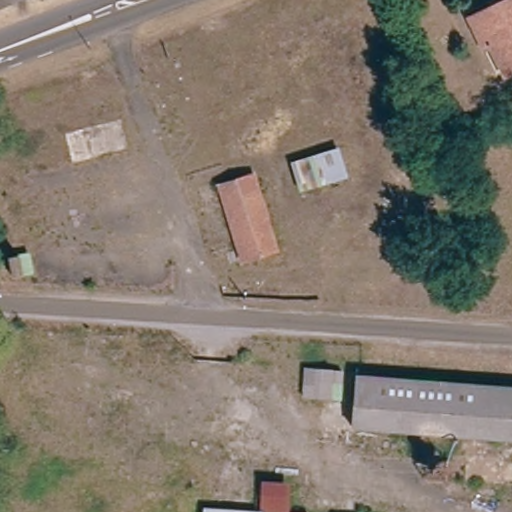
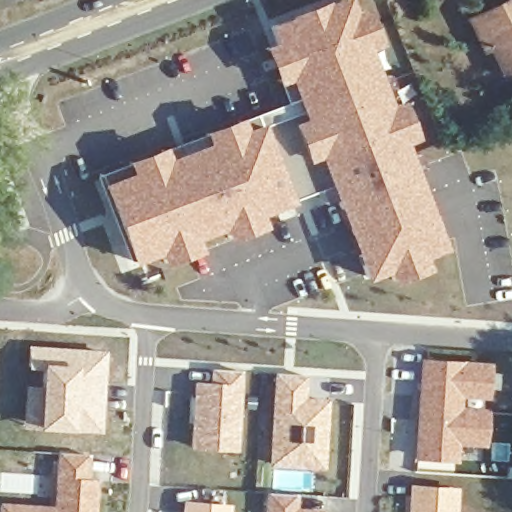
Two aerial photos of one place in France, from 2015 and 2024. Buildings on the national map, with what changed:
new [(287,103),(280,83),(277,85),(263,45),(273,42),(267,24),(335,0),(351,0),(355,11),(366,6),(381,45),(371,49),(392,104),(403,99),(417,139),(406,144),(445,251),(425,258),(429,270),(392,284),(387,273),(365,280),(330,186),(291,199),(293,204),(261,216),(265,227),(228,243),(223,230),(195,240),(199,253),(164,268),(159,255),(133,265),(102,184),(98,175),(287,103)]
unchanged [(491,52),(484,55),(472,31),(512,11),(512,79),(505,82),(491,52)]
demolished [(125,148),(87,160),(79,130),(115,119),(125,148)]
demolished [(351,178),(302,195),(292,159),(339,144),(351,178)]
demolished [(239,203),(228,206),(221,183),(260,171),(267,194),(283,246),(255,255),(239,203)]
demolished [(420,189),(432,222),(392,237),(379,200),(420,189)]
new [(25,384),(37,385),(39,371),(25,370),(27,344),(106,350),(99,432),(52,429),(21,424),(25,384)]
new [(420,357),(491,361),(483,448),(458,446),(455,470),(412,469),(420,357)]
new [(211,385),(213,368),(241,370),(235,449),(192,447),(197,383),(211,385)]
new [(273,372),(308,376),(306,395),(329,398),(324,471),(267,466),(273,372)]
demolished [(342,376),(341,386),(330,385),(329,401),(303,399),(305,373),(342,376)]
demolished [(357,379),(512,392),(512,443),(353,430),(357,379)]
new [(51,505),(56,452),(92,454),(90,478),(98,478),(95,512),(0,512),(0,502),(51,505)]
new [(457,486),(455,512),(406,512),(409,483),(457,486)]
new [(299,495),(298,506),(322,507),(321,512),(263,512),(264,492),(299,495)]
new [(229,504),(229,512),(181,512),(182,500),(229,504)]

